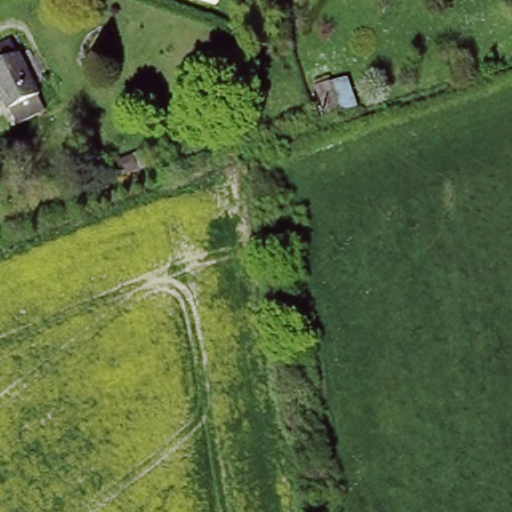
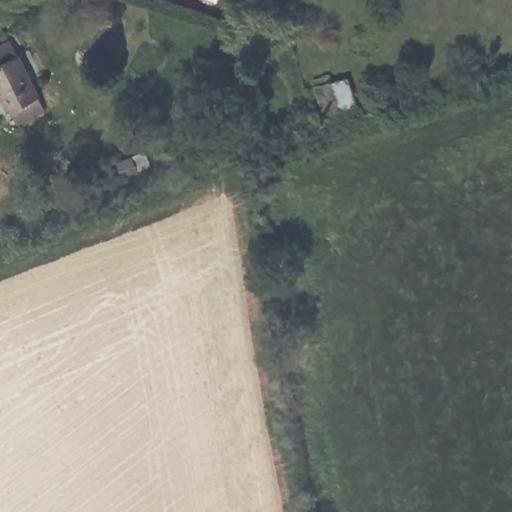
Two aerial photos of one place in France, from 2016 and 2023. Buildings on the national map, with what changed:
unchanged [(10,38),(19,52),(30,72),(37,86),(47,105),(16,120),(9,105),(0,88),(0,43),(10,38)]

